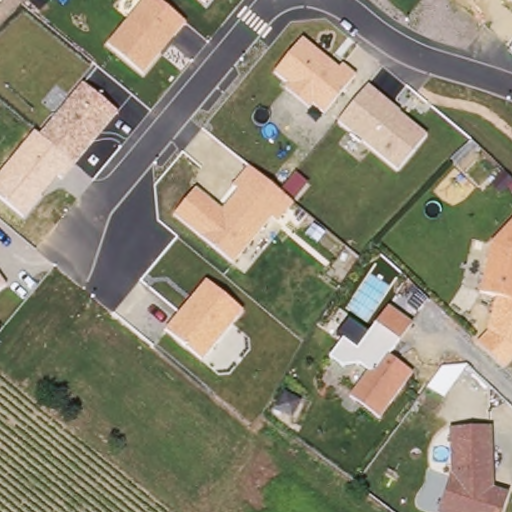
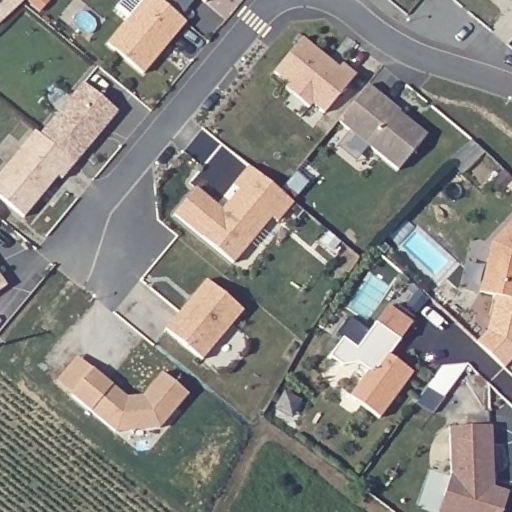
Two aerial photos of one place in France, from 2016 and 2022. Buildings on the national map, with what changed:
new [(25,0),(0,24),(0,6),(6,0),(25,0)]
unchanged [(143,0),(161,0),(188,24),(144,74),(108,45),(143,0)]
unchanged [(207,0),(205,2),(202,0),(207,0)]
unchanged [(313,105),(309,109),(286,90),(290,85),(275,73),(303,39),(339,69),(343,64),(356,76),(324,115),(313,105)]
unchanged [(39,135),(83,80),(121,111),(77,164),(39,135)]
unchanged [(339,121),(368,86),(429,135),(398,174),(339,121)]
unchanged [(77,164),(63,181),(57,177),(23,217),(0,199),(0,158),(33,131),(39,135),(77,164)]
unchanged [(175,216),(198,187),(224,210),(239,190),(233,184),(249,164),(295,204),(278,224),(272,217),(233,265),(175,216)]
unchanged [(490,245),(512,221),(512,303),(481,296),(490,245)]
unchanged [(8,287),(0,292),(0,277),(8,287)]
unchanged [(165,330),(207,280),(243,311),(201,360),(165,330)]
unchanged [(512,359),(502,368),(478,342),(488,332),(496,300),(512,303),(512,359)]
unchanged [(414,326),(391,360),(414,374),(379,422),(349,399),(367,375),(359,368),(345,374),(327,359),(344,337),(358,349),(388,307),(414,326)]
new [(143,396),(162,373),(188,395),(160,429),(116,433),(71,395),(56,382),(77,356),(93,369),(127,397),(143,396)]
new [(442,366),(467,365),(443,397),(428,386),(442,366)]
unchanged [(452,474),(448,425),(495,425),(495,487),(512,493),(505,512),(439,512),(452,474)]

